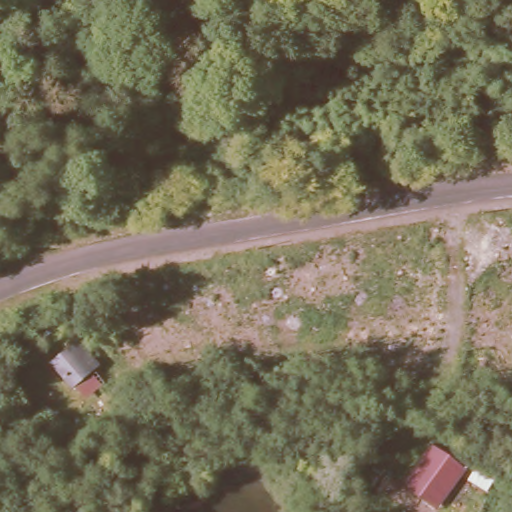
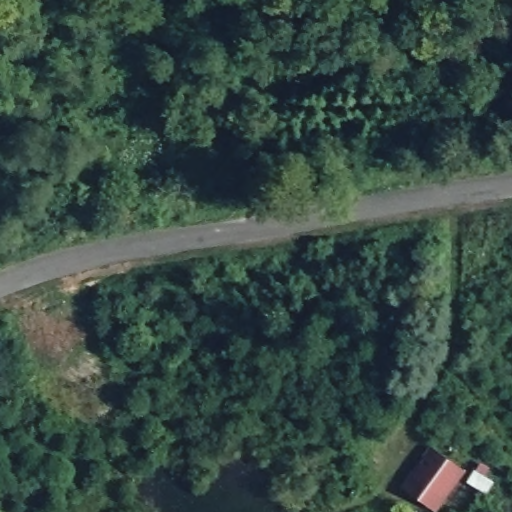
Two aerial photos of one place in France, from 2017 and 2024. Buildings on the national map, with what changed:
unchanged [(81,345),(100,370),(73,386),(53,362),(81,345)]
unchanged [(406,487),(433,447),(469,473),(440,510),(406,487)]

